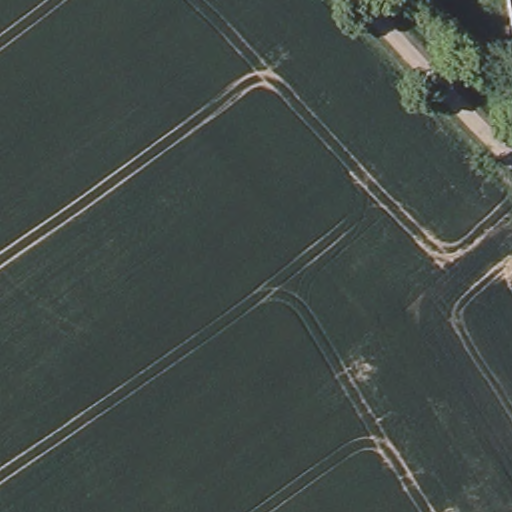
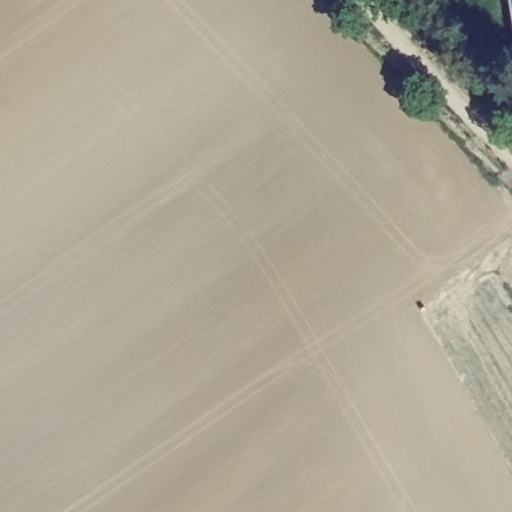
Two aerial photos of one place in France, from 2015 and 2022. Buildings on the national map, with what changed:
unchanged [(509,0),(512,0),(512,26),(509,0)]

